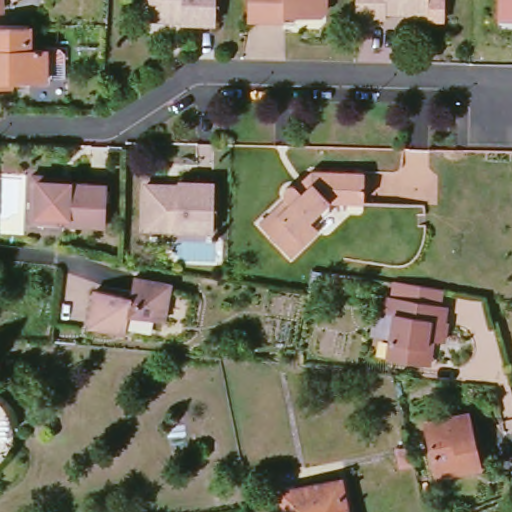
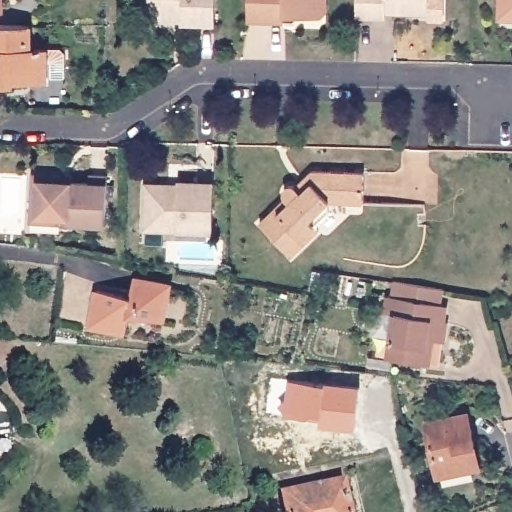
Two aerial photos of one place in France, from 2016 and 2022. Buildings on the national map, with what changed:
unchanged [(0,11),(0,0),(2,0),(3,10),(0,11)]
unchanged [(152,0),(217,0),(216,29),(184,28),(184,25),(151,25),(151,19),(152,0)]
unchanged [(251,23),(252,0),(331,0),(331,15),(322,19),(304,19),(298,24),(289,24),(251,23)]
unchanged [(432,22),(432,16),(424,16),(389,15),(389,23),(358,22),(358,0),(447,0),(447,23),(432,22)]
unchanged [(500,0),(512,0),(512,22),(499,21),(500,0)]
unchanged [(65,54),(65,79),(46,79),(46,85),(0,85),(0,27),(32,27),(31,53),(37,53),(37,49),(47,49),(61,50),(65,54)]
unchanged [(308,243),(293,257),(261,224),(287,199),(285,197),(285,190),(289,187),(293,186),(298,188),(313,173),(366,174),(365,204),(333,204),(332,213),(316,228),(319,232),(308,243)]
unchanged [(144,186),(165,186),(166,189),(175,189),(176,182),(211,183),(211,230),(143,230),(144,186)]
unchanged [(33,223),(34,184),(68,184),(73,185),(74,190),(92,191),(93,184),(110,185),(108,233),(54,231),(33,230),(33,223)]
unchanged [(137,276),(172,281),(168,318),(132,313),(129,330),(93,325),(98,290),(134,295),(137,276)]
unchanged [(383,371),(388,326),(380,325),(383,309),(388,309),(390,294),(422,298),(439,300),(436,316),(443,317),(440,332),(438,352),(427,350),(424,376),(416,374),(383,371)]
new [(289,384),(359,391),(354,432),(318,428),(319,418),(309,418),(305,419),(286,419),(277,410),(288,404),(289,384)]
unchanged [(455,474),(438,478),(425,426),(466,417),(474,448),(479,469),(455,474)]
unchanged [(340,482),(347,512),(285,512),(281,494),(340,482)]

